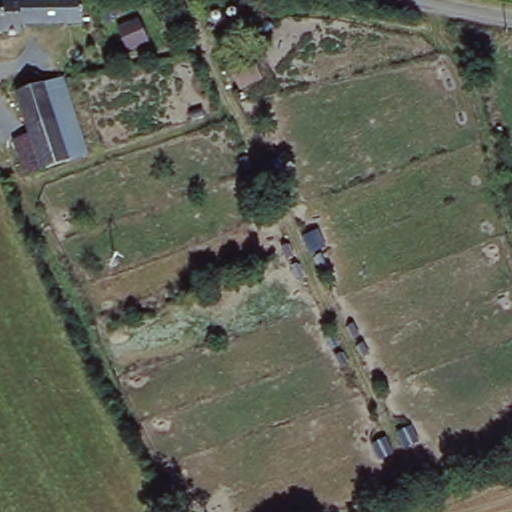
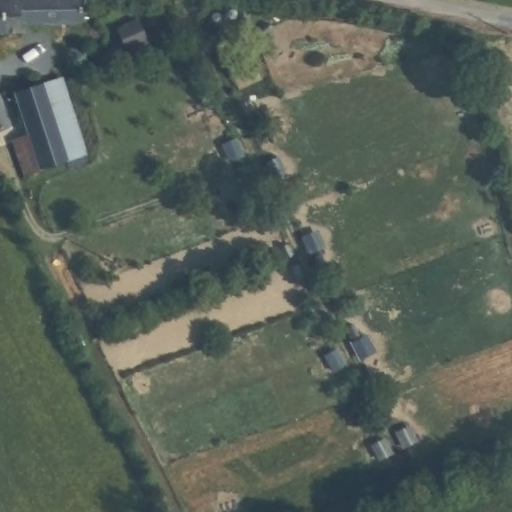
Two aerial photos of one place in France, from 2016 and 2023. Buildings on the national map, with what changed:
unchanged [(74,17),(71,18),(51,21),(50,19),(24,22),(24,27),(0,30),(0,1),(7,0),(54,0),(76,1),(74,17)]
unchanged [(20,127),(1,85),(56,63),(92,152),(40,172),(22,180),(2,135),(20,127)]

